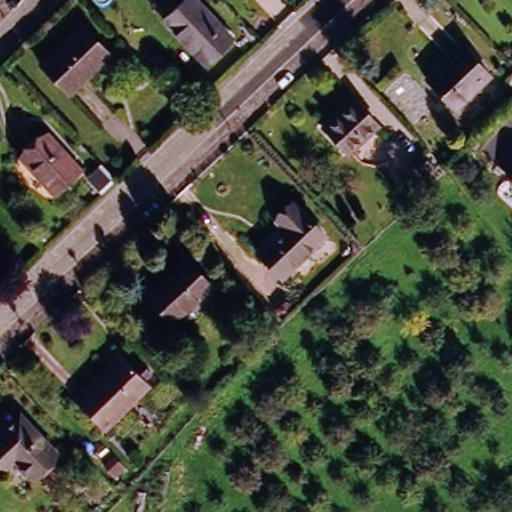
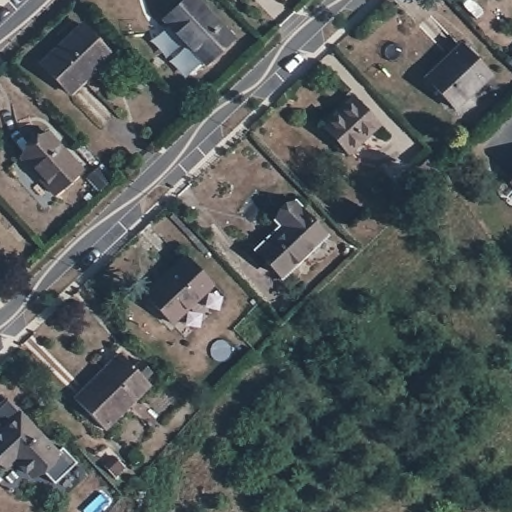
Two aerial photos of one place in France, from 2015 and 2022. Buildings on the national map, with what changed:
unchanged [(185,0),(200,0),(232,34),(209,57),(169,14),(185,0)]
unchanged [(83,23),(110,53),(72,88),(43,59),(83,23)]
unchanged [(466,39),(493,68),(457,101),(431,72),(466,39)]
unchanged [(328,127),(360,98),(381,121),(350,151),(328,127)]
unchanged [(37,131),(71,168),(48,190),(14,153),(37,131)]
unchanged [(95,194),(80,178),(87,171),(75,159),(83,151),(110,179),(95,194)]
unchanged [(512,178),(511,177),(512,177),(512,178)]
unchanged [(259,246),(285,222),(276,213),(293,197),(327,231),(285,273),(259,246)]
unchanged [(188,253),(212,278),(171,317),(147,292),(188,253)]
unchanged [(125,354),(151,382),(107,424),(81,396),(125,354)]
unchanged [(0,459),(0,435),(20,416),(55,454),(32,475),(16,459),(6,466),(0,459)]

